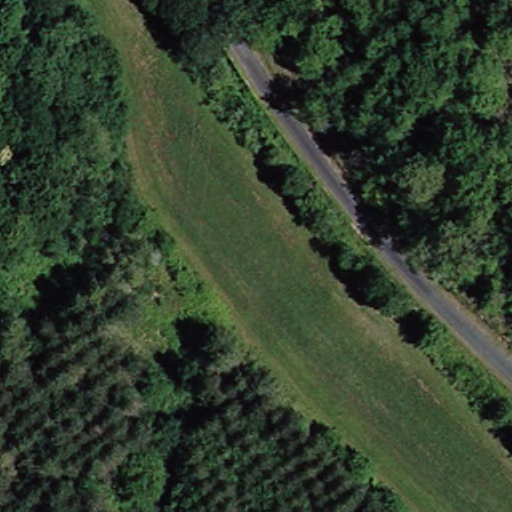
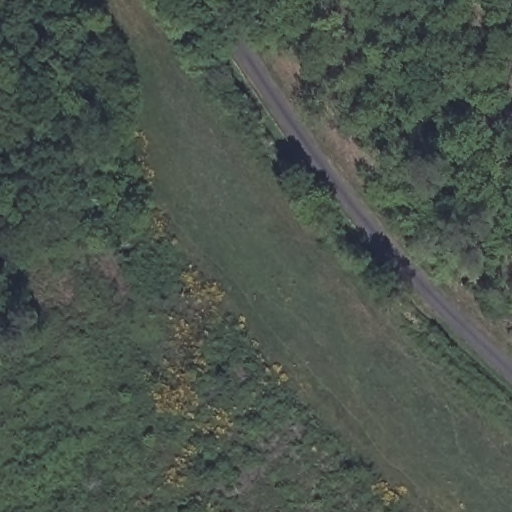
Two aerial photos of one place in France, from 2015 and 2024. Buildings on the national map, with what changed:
[]

